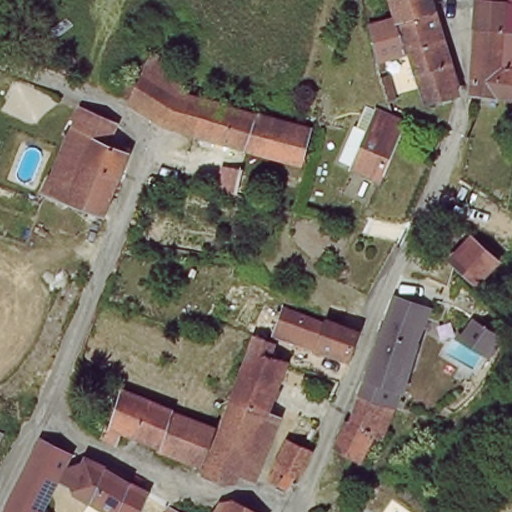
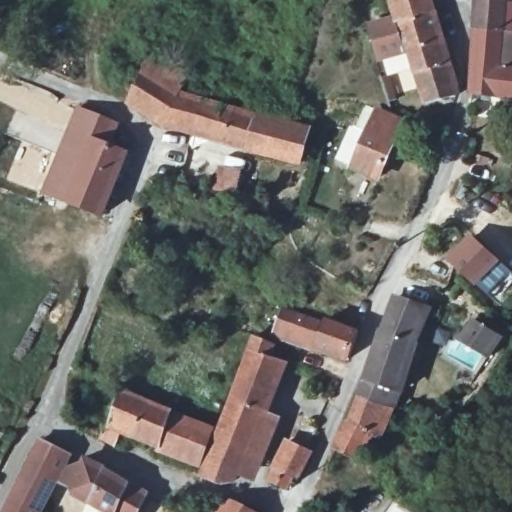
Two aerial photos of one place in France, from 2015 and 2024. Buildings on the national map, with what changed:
unchanged [(385,0),(434,0),(435,6),(390,18),(389,19),(385,0)]
unchanged [(474,1),(500,2),(498,28),(512,29),(512,96),(470,93),(473,26),(474,1)]
unchanged [(457,94),(425,102),(417,93),(404,54),(374,59),(365,26),(389,19),(390,18),(435,6),(457,94)]
unchanged [(136,101),(137,99),(129,95),(134,85),(141,88),(146,77),(153,59),(193,77),(186,94),(208,103),(200,131),(175,122),(136,101)]
unchanged [(208,103),(259,119),(250,147),(200,131),(208,103)]
unchanged [(102,143),(121,153),(97,214),(36,194),(72,106),(110,123),(102,143)]
unchanged [(250,147),(259,119),(260,110),(312,121),(304,165),(248,152),(250,147)]
unchanged [(384,181),(356,170),(378,114),(405,124),(397,146),(394,155),(384,181)]
unchanged [(228,165),(237,164),(239,154),(253,157),(246,194),(222,187),(228,165)]
unchanged [(475,232),(499,253),(476,279),(455,258),(451,254),(475,232)]
unchanged [(377,332),(391,304),(424,318),(411,349),(376,336),(377,332)]
unchanged [(285,338),(276,331),(282,310),(326,323),(329,318),(360,328),(348,354),(285,338)]
unchanged [(459,340),(470,321),(499,339),(487,357),(459,340)]
unchanged [(368,440),(354,463),(328,452),(340,429),(344,430),(355,400),(360,384),(361,383),(376,336),(411,349),(395,397),(390,413),(374,442),(368,440)]
unchanged [(222,478),(202,472),(219,429),(251,349),(282,360),(265,407),(236,472),(231,480),(222,478)]
unchanged [(156,439),(109,418),(121,385),(149,399),(154,401),(170,408),(156,439)]
unchanged [(170,408),(215,428),(200,462),(155,443),(156,439),(170,408)]
unchanged [(267,477),(288,437),(306,446),(311,449),(299,474),(292,473),(286,485),(267,477)]
unchanged [(3,512),(37,438),(70,452),(39,511),(38,512),(3,512)]
unchanged [(112,512),(93,502),(111,471),(151,492),(141,512),(112,512)]
unchanged [(230,496),(235,497),(266,512),(210,512),(222,498),(230,496)]
unchanged [(191,512),(163,512),(171,501),(191,512)]

